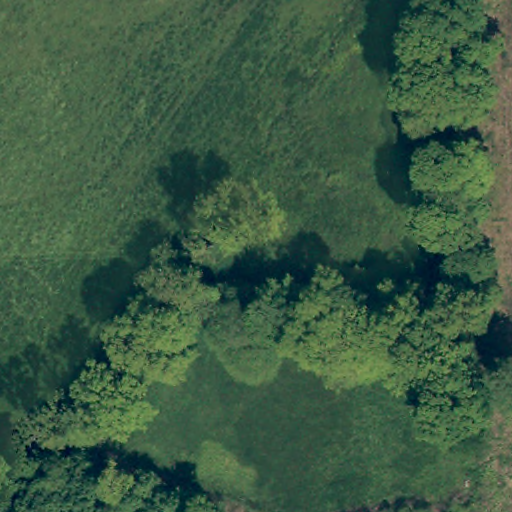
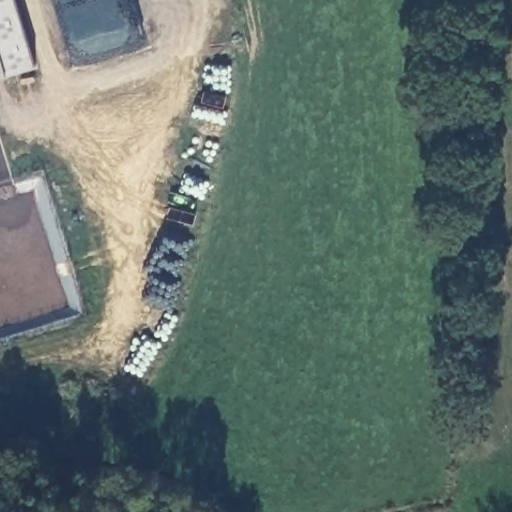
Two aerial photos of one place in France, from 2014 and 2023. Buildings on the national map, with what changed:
new [(0,0),(16,0),(36,68),(0,79),(0,0)]

